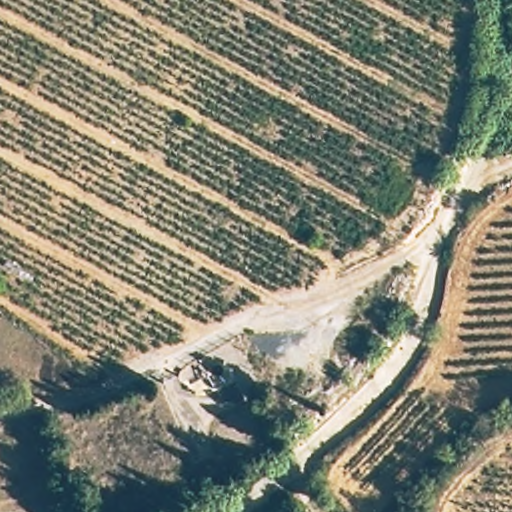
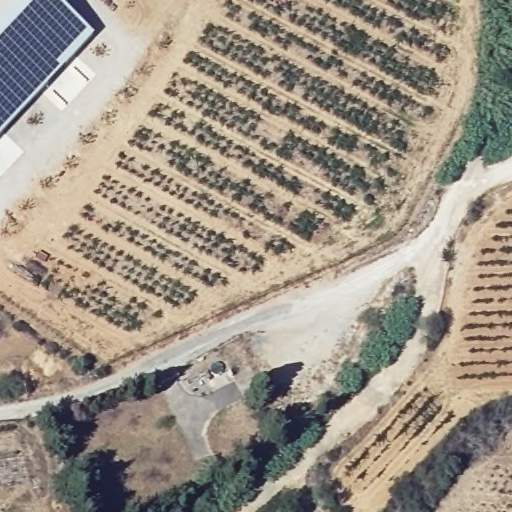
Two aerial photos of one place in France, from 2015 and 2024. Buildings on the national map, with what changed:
new [(60,0),(63,3),(95,36),(75,59),(43,94),(11,128),(0,142),(0,16),(15,0),(60,0)]
new [(75,59),(91,80),(61,111),(43,94),(75,59)]
new [(0,175),(0,151),(12,163),(0,175)]

